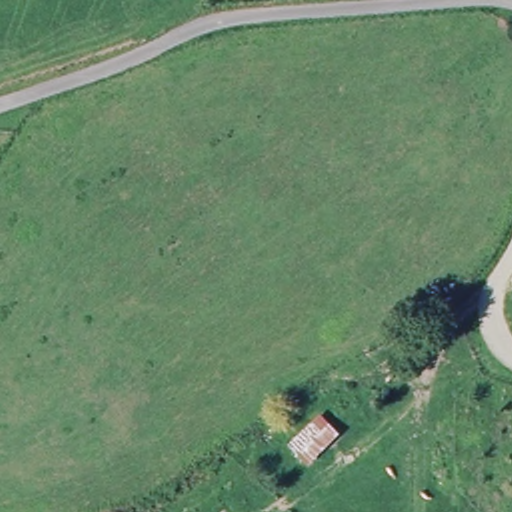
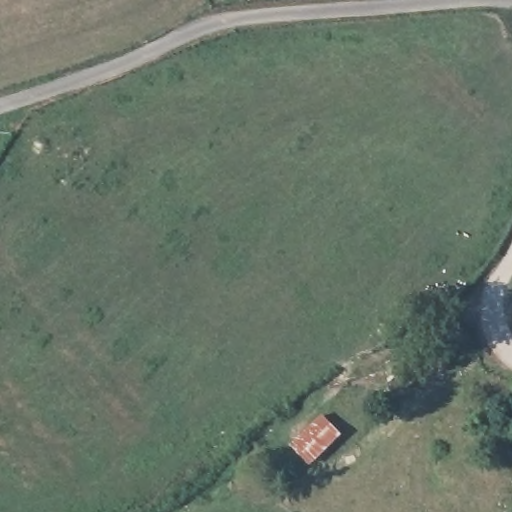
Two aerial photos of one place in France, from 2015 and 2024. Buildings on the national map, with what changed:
unchanged [(292,443),(324,413),(344,435),(316,465),(292,443)]

